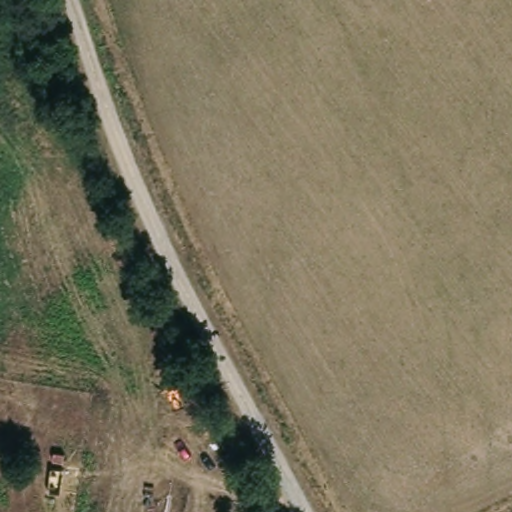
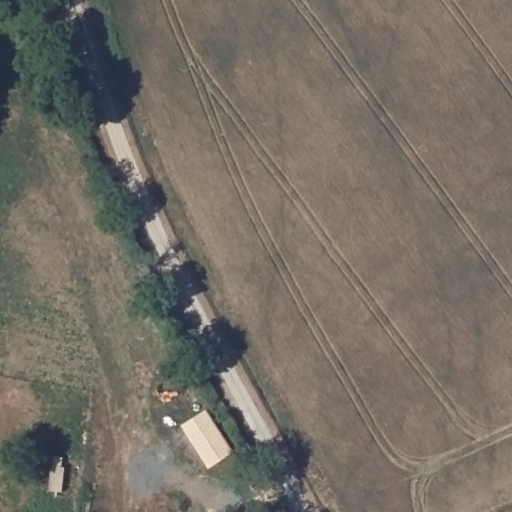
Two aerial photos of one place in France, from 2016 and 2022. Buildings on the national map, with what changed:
demolished [(207,412),(225,453),(198,469),(179,426),(207,412)]

